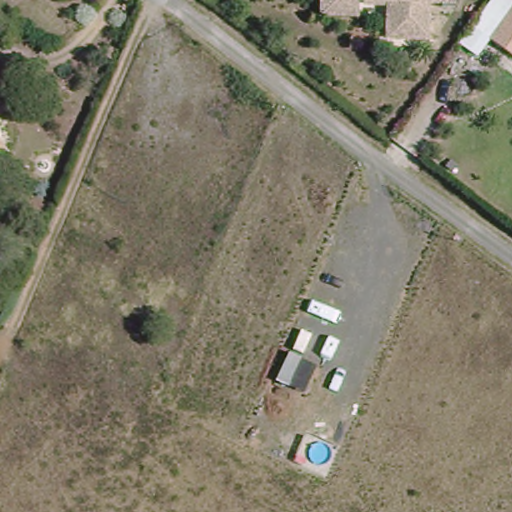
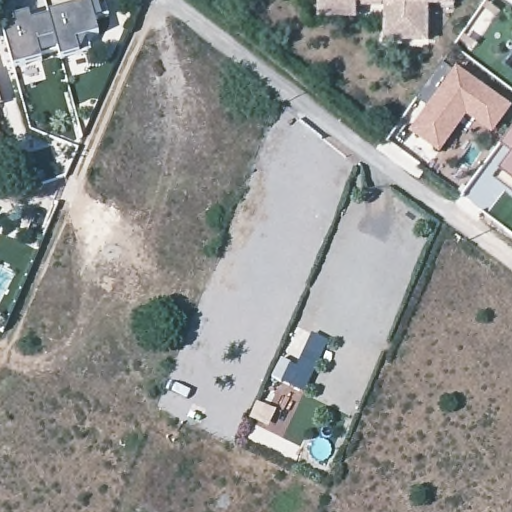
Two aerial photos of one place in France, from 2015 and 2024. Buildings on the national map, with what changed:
new [(15,23),(13,18),(30,14),(32,21),(90,3),(103,0),(109,17),(95,20),(99,35),(86,39),(80,55),(62,60),(59,52),(42,57),(43,61),(15,69),(5,27),(15,23)]
unchanged [(322,0),(455,0),(455,5),(430,5),(430,41),(387,41),(388,6),(359,6),(358,20),(322,19),(322,5),(322,0)]
demolished [(478,9),(485,0),(509,0),(512,2),(512,32),(478,9)]
new [(457,70),(460,65),(512,104),(512,113),(495,134),(470,115),(443,154),(412,131),(430,105),(419,99),(446,62),(457,70)]
new [(505,145),(512,135),(512,150),(505,145)]
new [(498,180),(505,171),(512,162),(512,191),(498,180)]

